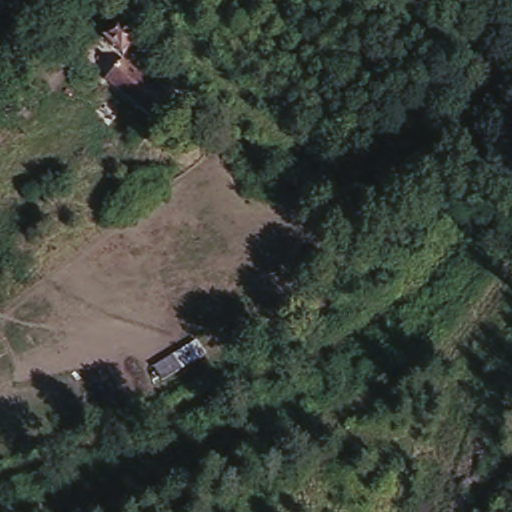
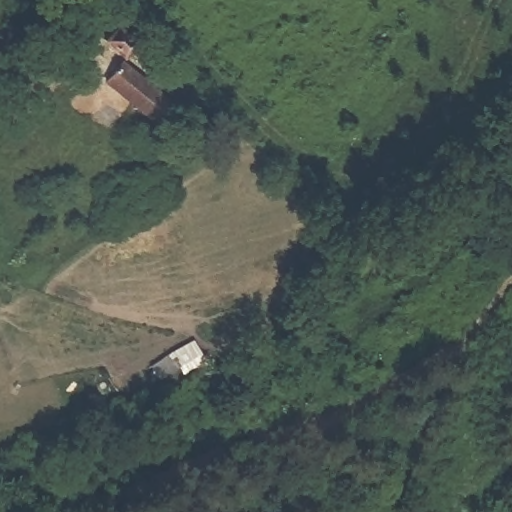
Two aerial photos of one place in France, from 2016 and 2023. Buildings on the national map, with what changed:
unchanged [(135,41),(120,57),(102,40),(119,22),(135,41)]
unchanged [(160,110),(142,128),(100,84),(117,67),(160,110)]
unchanged [(149,370),(196,342),(206,358),(161,386),(149,370)]

